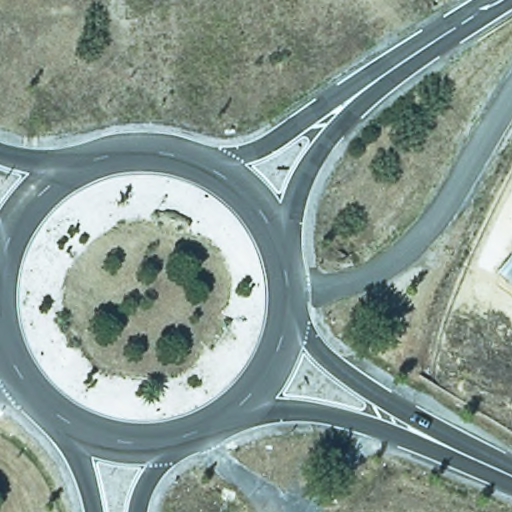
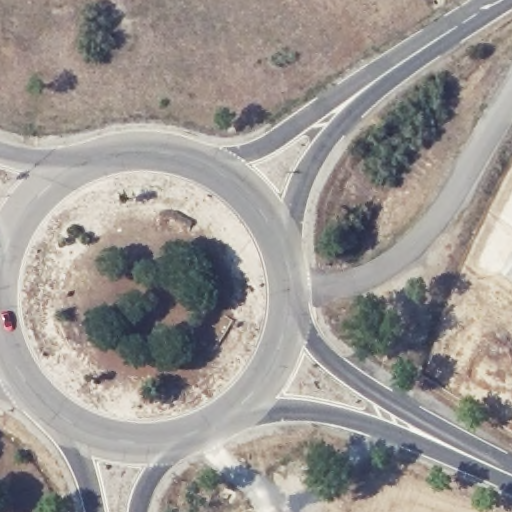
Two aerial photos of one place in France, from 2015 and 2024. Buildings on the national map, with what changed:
unchanged [(497,270),(512,252),(512,283),(497,270)]

